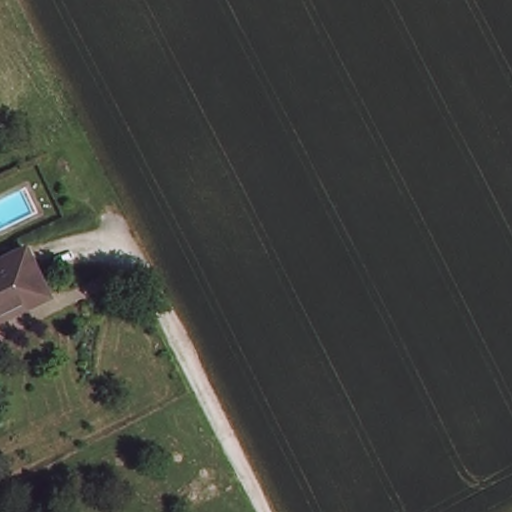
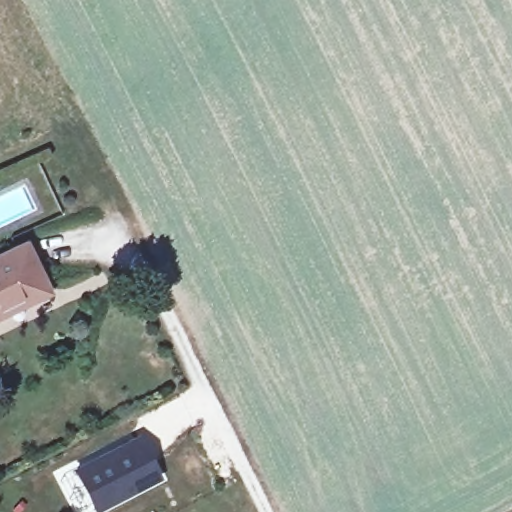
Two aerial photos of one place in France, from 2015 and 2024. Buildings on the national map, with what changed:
unchanged [(0,318),(0,262),(27,248),(44,286),(47,294),(0,318)]
new [(139,439),(158,479),(95,510),(75,470),(139,439)]

